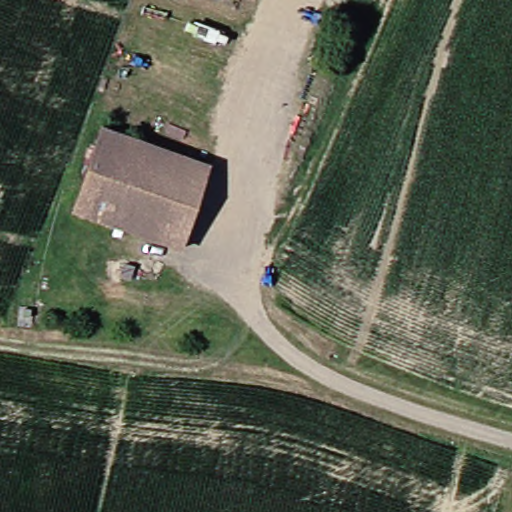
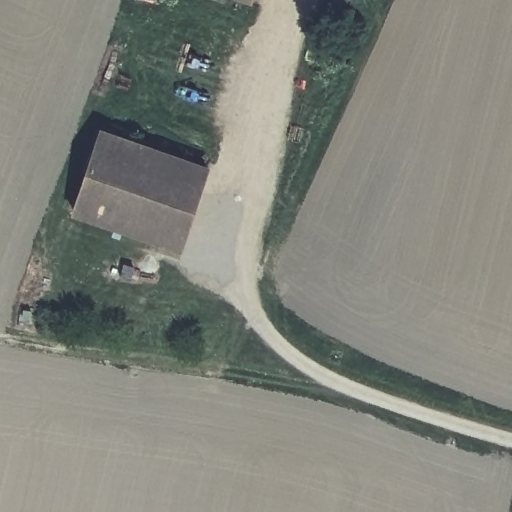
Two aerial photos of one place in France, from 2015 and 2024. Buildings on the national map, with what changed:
unchanged [(242,1),(240,0),(242,0),(242,1)]
unchanged [(93,127),(200,165),(172,248),(67,212),(93,127)]

